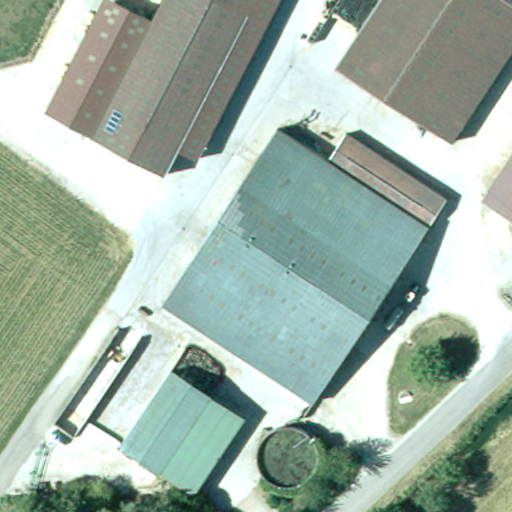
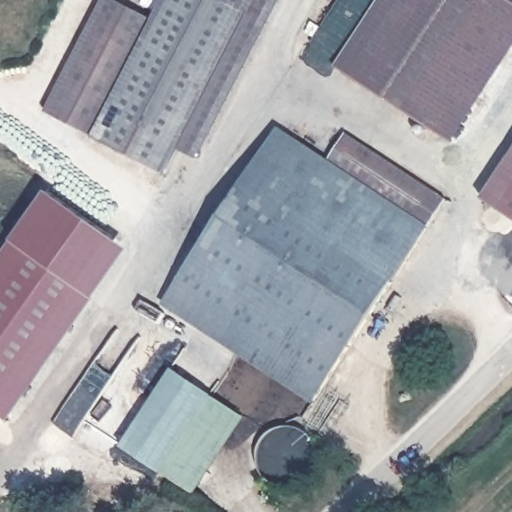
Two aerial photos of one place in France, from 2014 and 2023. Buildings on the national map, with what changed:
unchanged [(168,173),(48,110),(105,0),(120,0),(157,19),(166,0),(258,0),(168,173)]
unchanged [(512,1),(512,16),(437,131),(340,65),(382,0),(511,0),(512,1)]
unchanged [(437,131),(512,16),(512,53),(454,142),(437,131)]
unchanged [(329,159),(347,134),(448,200),(314,401),(164,301),(279,127),(329,159)]
unchanged [(512,156),(512,217),(484,198),(512,156)]
new [(49,190),(132,248),(98,298),(11,421),(0,414),(0,259),(14,239),(49,190)]
unchanged [(122,443),(172,369),(211,397),(243,419),(192,492),(161,471),(122,443)]

